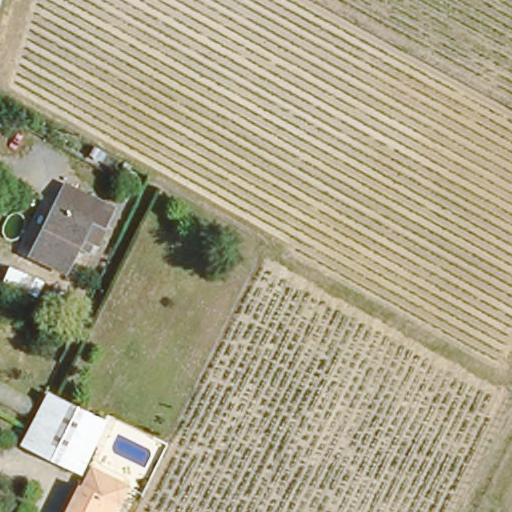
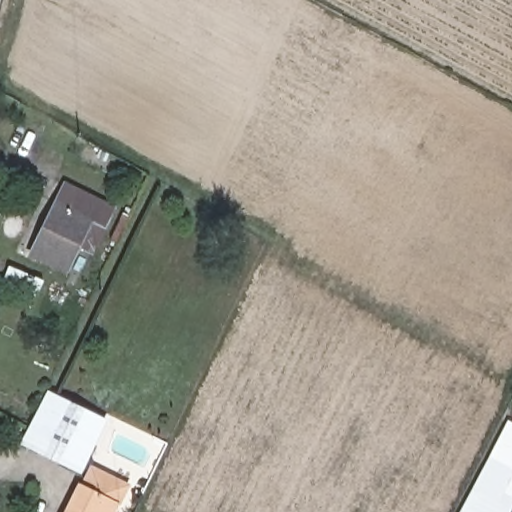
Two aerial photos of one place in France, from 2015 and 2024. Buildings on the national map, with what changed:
unchanged [(83,240),(68,271),(33,252),(68,180),(116,204),(107,223),(96,246),(83,240)]
unchanged [(97,416),(73,465),(22,438),(44,390),(97,416)]
new [(460,512),(508,421),(512,424),(512,509),(510,512),(460,512)]
unchanged [(84,484),(93,466),(112,476),(130,483),(121,501),(118,500),(113,512),(67,512),(81,482),(84,484)]

